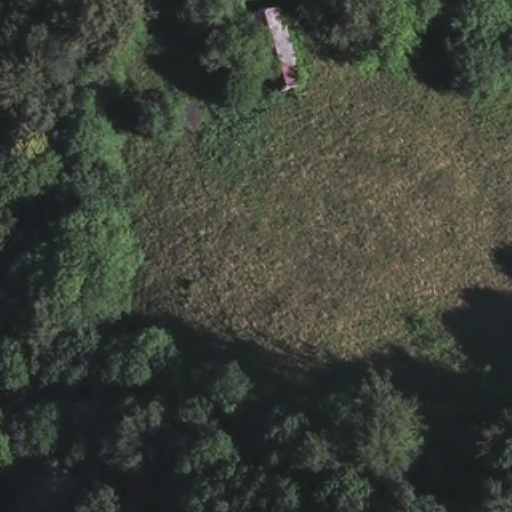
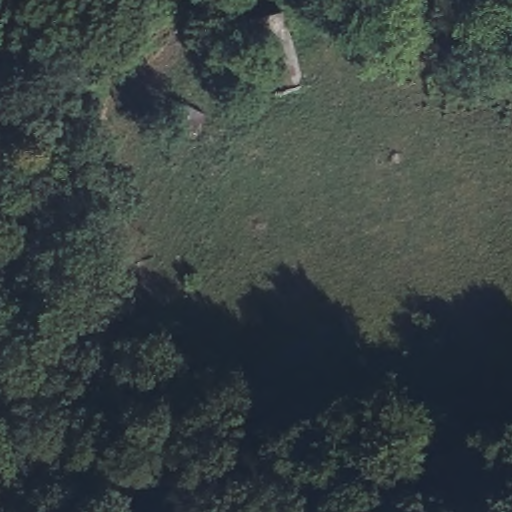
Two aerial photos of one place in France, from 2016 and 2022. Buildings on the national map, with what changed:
unchanged [(296,39),(312,86),(281,96),(256,21),(287,10),(296,39)]

